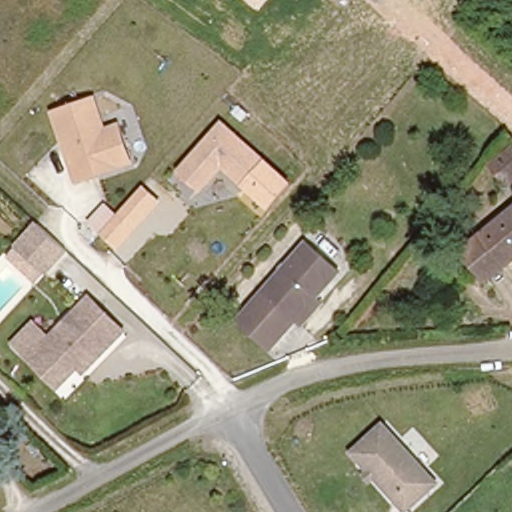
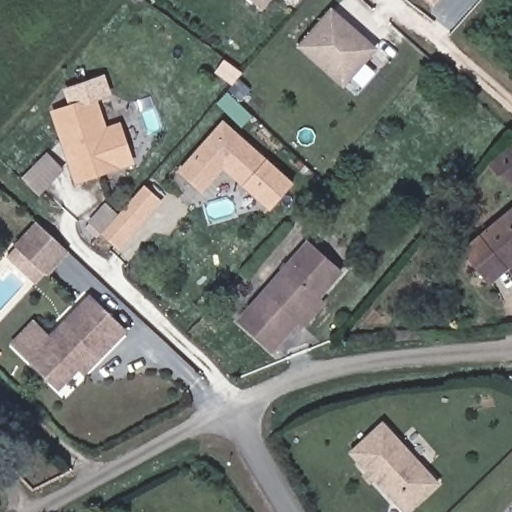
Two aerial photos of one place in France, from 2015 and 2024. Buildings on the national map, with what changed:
unchanged [(263,9),(253,0),(271,0),(263,9)]
new [(433,6),(425,0),(438,0),(433,6)]
new [(342,87),(296,46),(331,7),(377,48),(342,87)]
unchanged [(74,184),(50,110),(97,94),(107,126),(122,121),(136,164),(74,184)]
unchanged [(269,207),(249,190),(225,167),(202,193),(179,170),(224,119),(273,162),(293,180),(269,207)]
unchanged [(487,171),(512,146),(512,191),(510,193),(487,171)]
new [(47,157),(61,169),(41,192),(27,179),(47,157)]
unchanged [(117,249),(89,222),(105,203),(117,214),(144,184),(161,201),(117,249)]
unchanged [(493,272),(469,244),(512,206),(512,255),(506,260),(493,272)]
unchanged [(69,253),(42,282),(13,256),(40,226),(69,253)]
unchanged [(300,327),(294,321),(271,345),(240,318),(308,242),(340,269),(318,294),(324,301),(300,327)]
unchanged [(75,363),(53,383),(24,353),(86,292),(120,326),(85,362),(79,368),(75,363)]
unchanged [(408,512),(353,453),(385,424),(440,484),(410,512),(408,512)]

